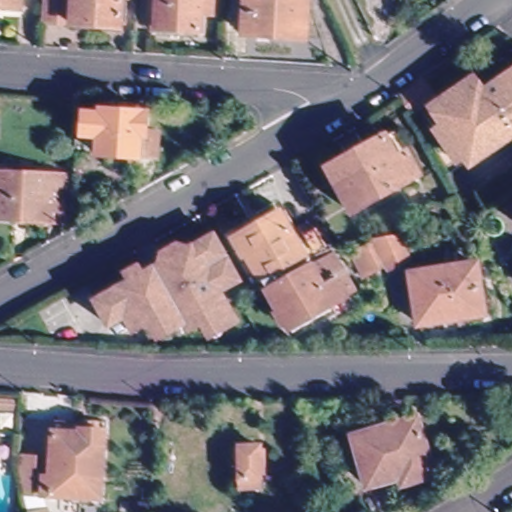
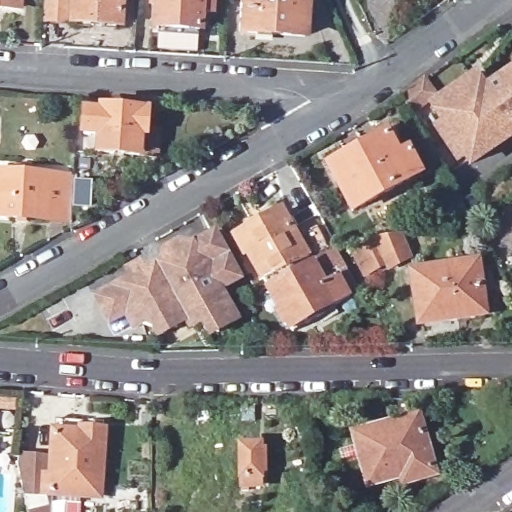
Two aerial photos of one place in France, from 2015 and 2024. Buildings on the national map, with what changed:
unchanged [(0,11),(0,0),(22,0),(21,12),(0,11)]
unchanged [(121,0),(120,23),(40,19),(42,0),(121,0)]
unchanged [(214,0),(214,8),(201,7),(199,32),(156,29),(158,0),(214,0)]
unchanged [(286,0),(308,2),(306,40),(246,35),(248,0),(286,0)]
unchanged [(428,113),(435,107),(431,101),(473,72),(485,90),(512,72),(512,126),(468,156),(464,151),(456,156),(428,113)]
unchanged [(91,142),(74,141),(76,121),(91,122),(91,117),(136,120),(135,137),(148,137),(146,164),(90,160),(91,142)]
unchanged [(385,137),(410,181),(354,214),(329,170),(385,137)]
unchanged [(482,204),(467,182),(512,152),(512,184),(482,204)]
unchanged [(6,174),(61,177),(59,223),(4,219),(6,174)]
unchanged [(228,234),(271,210),(290,244),(298,239),(294,232),(305,226),(316,246),(306,252),(255,280),(228,234)]
unchanged [(455,225),(453,213),(465,212),(471,222),(455,225)]
unchanged [(400,230),(408,256),(405,257),(388,267),(385,261),(364,272),(353,252),(359,249),(358,247),(372,240),(370,235),(392,231),(400,230)]
unchanged [(236,311),(222,318),(218,312),(206,318),(203,315),(195,318),(188,317),(186,312),(174,320),(169,312),(154,320),(144,317),(142,314),(138,317),(132,305),(110,317),(96,293),(119,281),(122,286),(210,237),(218,232),(238,270),(231,273),(219,280),(236,311)]
unchanged [(306,252),(309,258),(324,250),(345,286),(279,323),(255,280),(306,252)]
unchanged [(472,266),(482,316),(420,325),(411,275),(472,266)]
unchanged [(400,477),(367,487),(352,438),(415,419),(433,476),(412,482),(403,485),(400,477)]
unchanged [(54,469),(56,431),(82,432),(81,441),(103,442),(98,507),(24,502),(18,478),(19,467),(54,469)]
unchanged [(242,453),(260,454),(259,483),(242,482),(242,453)]

